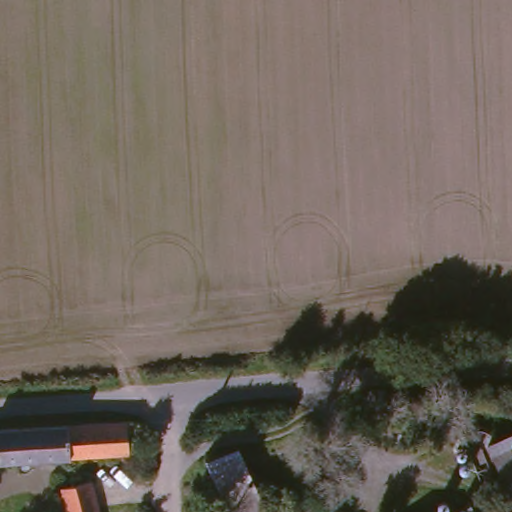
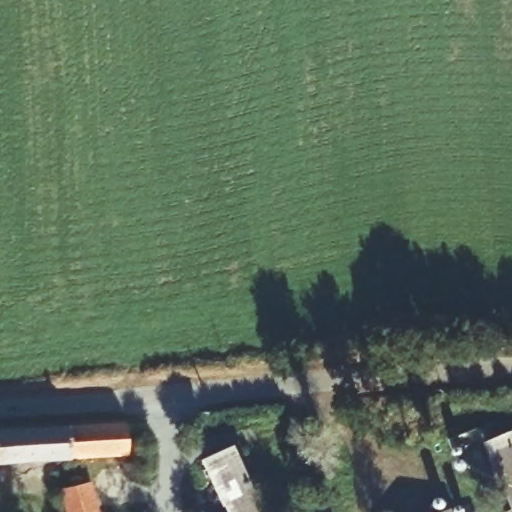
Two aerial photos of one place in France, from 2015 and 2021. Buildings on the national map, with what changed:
unchanged [(125,461),(0,470),(0,435),(122,427),(125,461)]
unchanged [(491,440),(512,431),(512,486),(491,440)]
unchanged [(249,456),(270,512),(231,512),(215,468),(249,456)]
unchanged [(94,512),(63,512),(58,491),(87,483),(94,512)]

